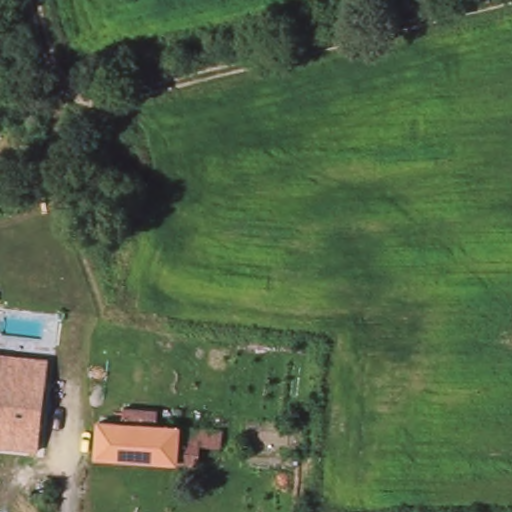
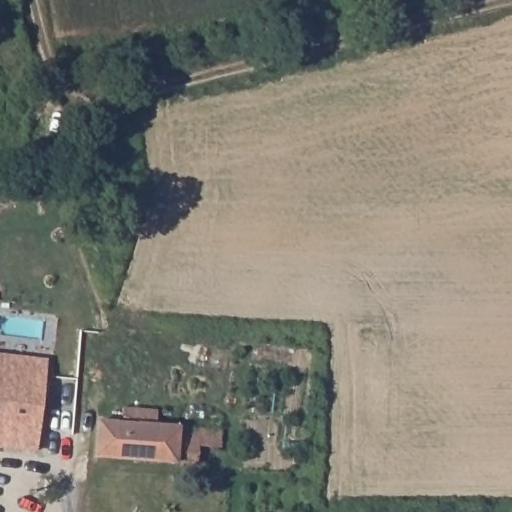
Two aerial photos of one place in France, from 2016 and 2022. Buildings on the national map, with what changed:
unchanged [(47,356),(38,445),(0,441),(0,351),(47,356)]
unchanged [(99,419),(122,421),(123,407),(158,410),(157,423),(225,429),(224,447),(201,445),(200,465),(96,457),(99,419)]

